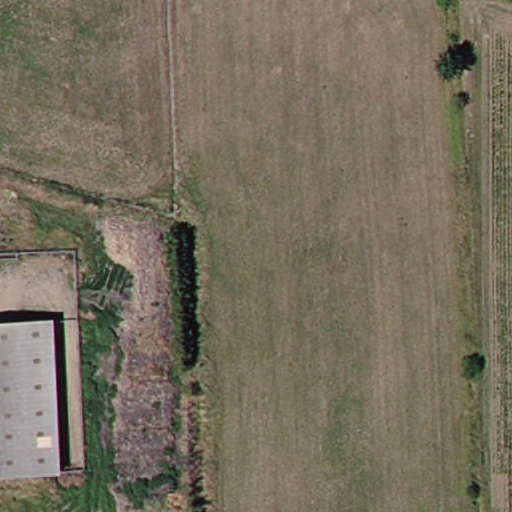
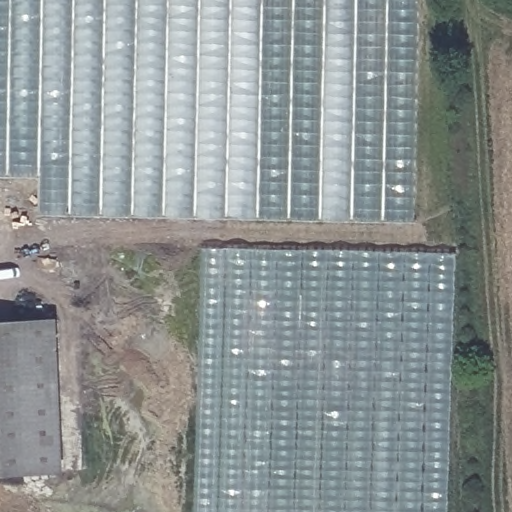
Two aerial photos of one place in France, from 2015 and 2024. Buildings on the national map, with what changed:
new [(413,222),(39,216),(40,177),(0,176),(0,0),(415,0),(413,222)]
new [(455,255),(447,512),(194,512),(201,247),(455,255)]
unchanged [(53,321),(60,472),(0,475),(0,323),(53,321)]

